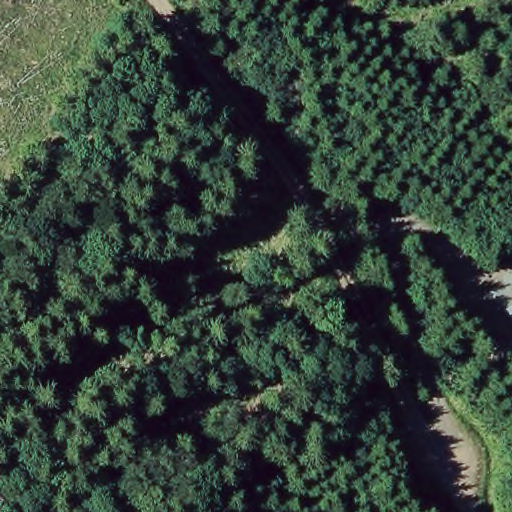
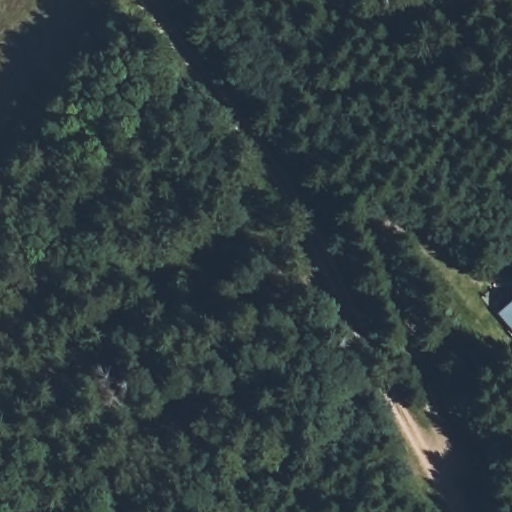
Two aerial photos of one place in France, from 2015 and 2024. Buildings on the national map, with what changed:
unchanged [(512,343),(494,320),(512,304),(512,343)]

